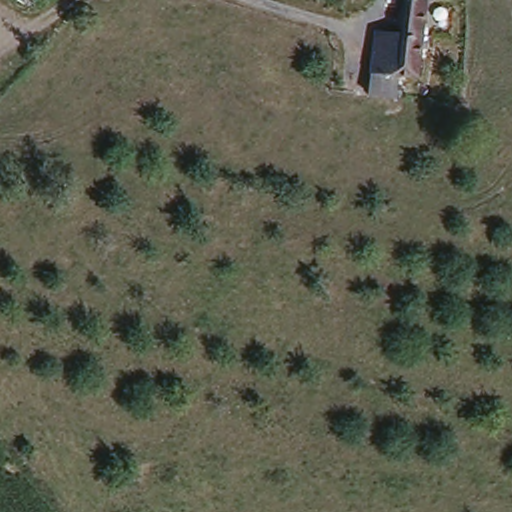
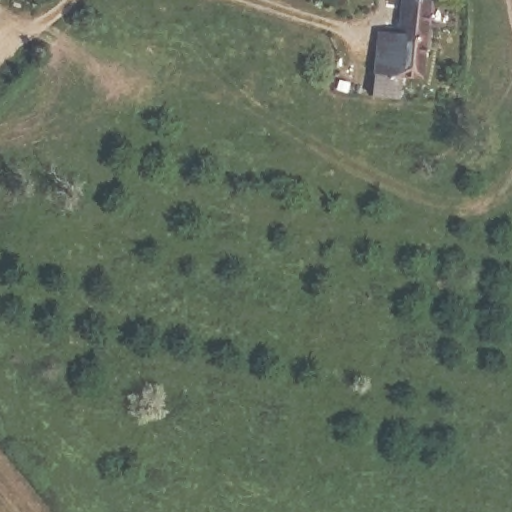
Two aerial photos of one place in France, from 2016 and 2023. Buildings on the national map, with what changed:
unchanged [(432,0),(427,72),(405,67),(407,24),(408,0),(432,0)]
unchanged [(405,67),(406,79),(386,78),(390,22),(407,24),(405,67)]

